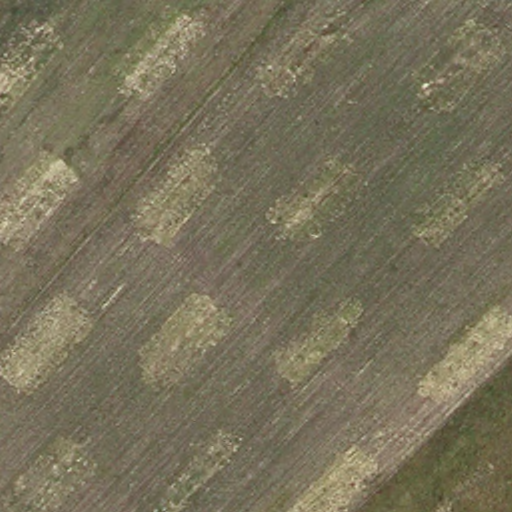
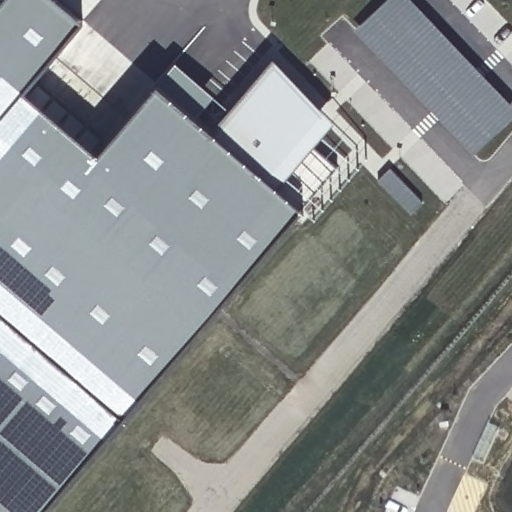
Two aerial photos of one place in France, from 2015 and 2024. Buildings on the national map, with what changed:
new [(97,153),(156,86),(174,61),(230,106),(272,57),(333,121),(312,145),(336,165),(299,206),(39,512),(0,512),(0,0),(58,0),(81,19),(23,88),(97,153)]

